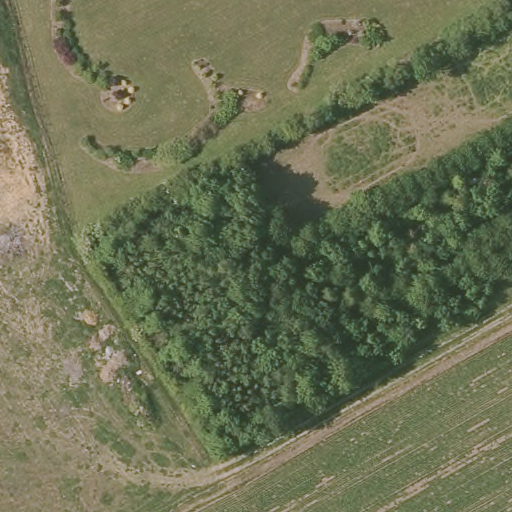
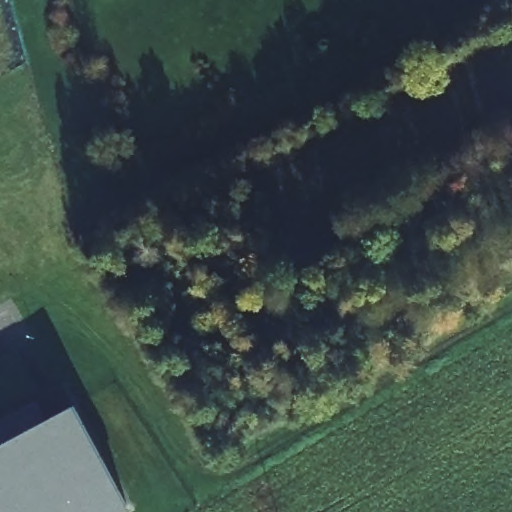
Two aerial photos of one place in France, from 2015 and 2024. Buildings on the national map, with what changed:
new [(72,402),(131,510),(127,512),(0,512),(0,421),(35,403),(41,420),(72,402)]

